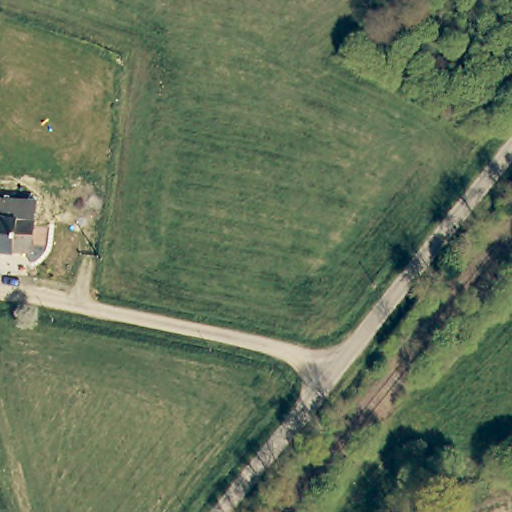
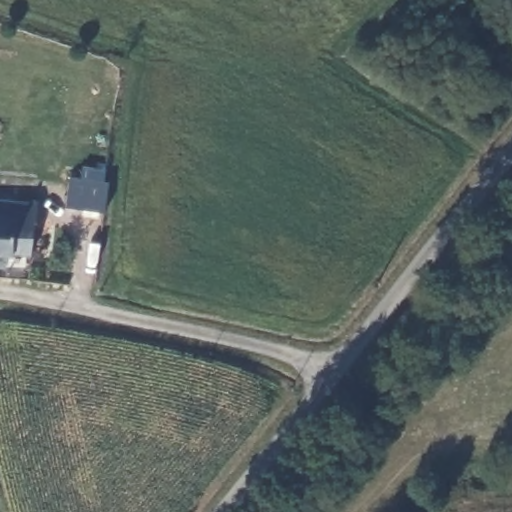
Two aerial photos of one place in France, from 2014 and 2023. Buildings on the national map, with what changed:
new [(69,179),(79,181),(81,168),(108,170),(104,211),(66,206),(69,179)]
unchanged [(12,251),(11,256),(0,254),(0,199),(37,204),(35,220),(28,252),(12,251)]

